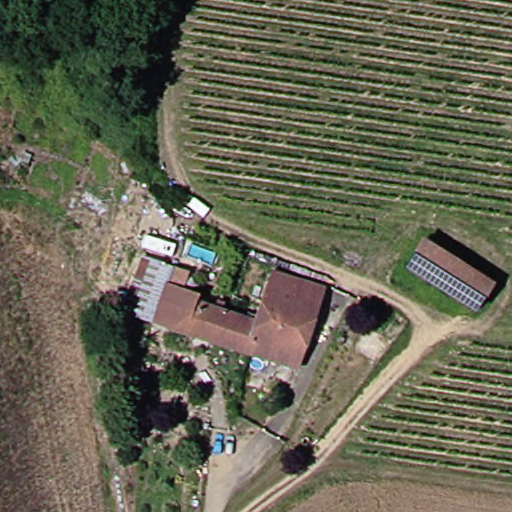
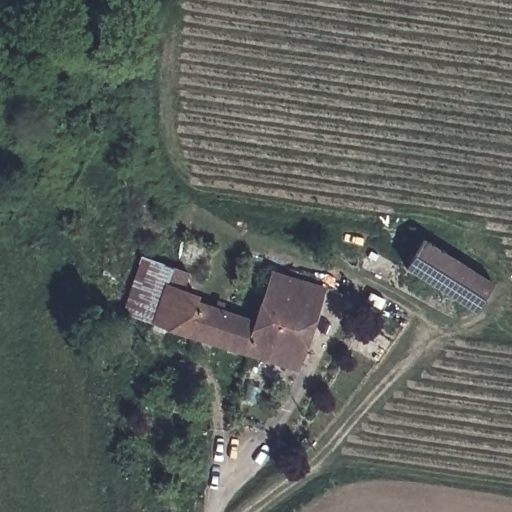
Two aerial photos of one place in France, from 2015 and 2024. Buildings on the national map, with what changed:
unchanged [(408,266),(422,244),(491,283),(474,305),(408,266)]
unchanged [(200,297),(217,303),(218,300),(227,301),(226,307),(250,315),(251,310),(258,313),(275,267),(324,282),(297,363),(123,310),(144,254),(176,263),(189,268),(184,288),(201,293),(200,297)]

